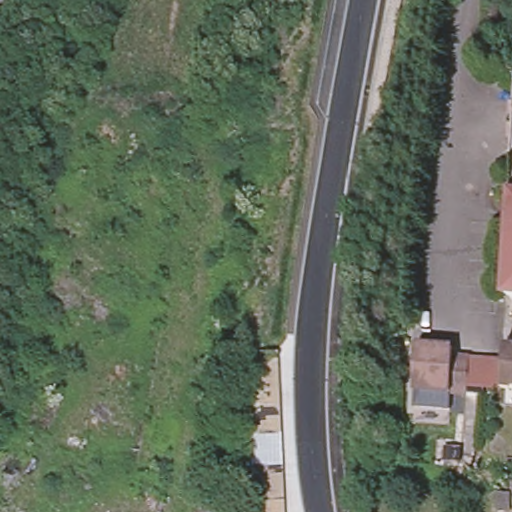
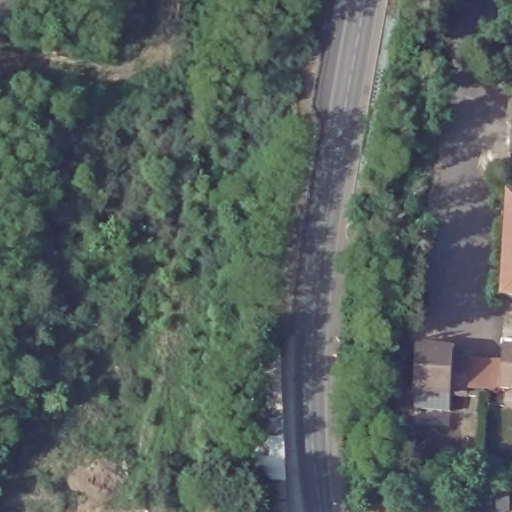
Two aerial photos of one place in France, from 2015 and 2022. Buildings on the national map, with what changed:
unchanged [(512,307),(497,306),(502,203),(512,203),(512,307)]
unchanged [(244,402),(243,388),(242,375),(242,361),(241,347),(272,346),(272,361),(273,374),(274,388),(274,402),(275,416),(275,429),(275,442),(276,456),(277,469),(277,484),(277,496),(278,510),(278,512),(249,512),(249,511),(248,497),(247,484),(247,470),(246,458),(245,444),(245,429),(244,417),(244,402)]
unchanged [(501,360),(502,353),(502,347),(512,348),(512,391),(500,391),(501,360)]
unchanged [(452,351),(452,358),(468,359),(467,390),(467,397),(415,395),(416,349),(445,350),(452,351)]
unchanged [(499,360),(501,360),(500,391),(467,390),(468,359),(499,360)]

